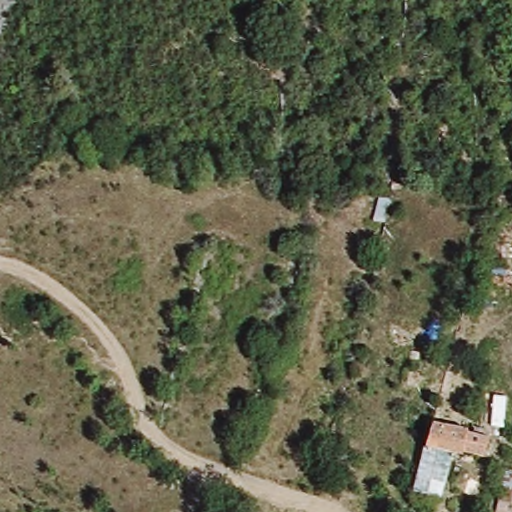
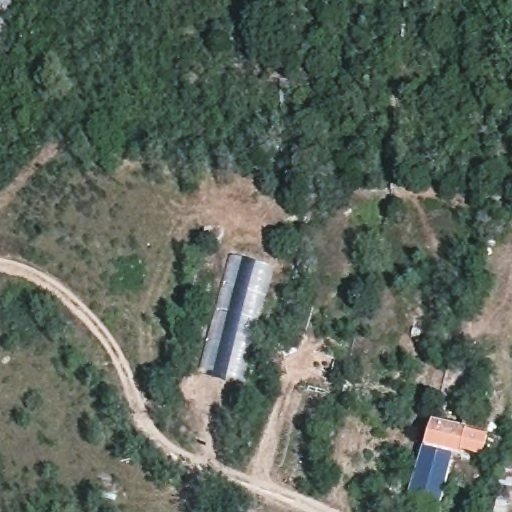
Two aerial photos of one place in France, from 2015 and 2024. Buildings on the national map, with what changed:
new [(274,269),(243,383),(203,374),(233,258),(274,269)]
unchanged [(430,420),(467,430),(465,435),(482,439),(480,450),(460,446),(458,451),(425,442),(430,420)]
new [(454,450),(442,499),(414,492),(425,442),(454,450)]
new [(509,512),(496,512),(504,467),(512,469),(512,501),(511,501),(509,512)]

